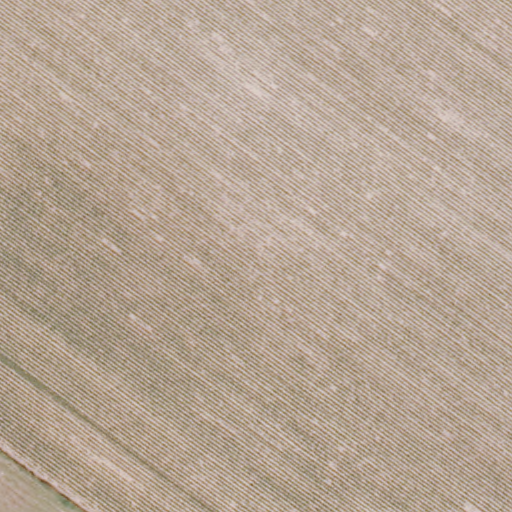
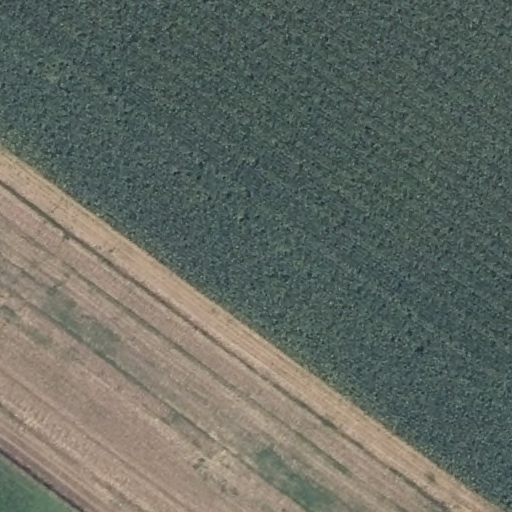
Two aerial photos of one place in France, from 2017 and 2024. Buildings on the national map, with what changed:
[]

